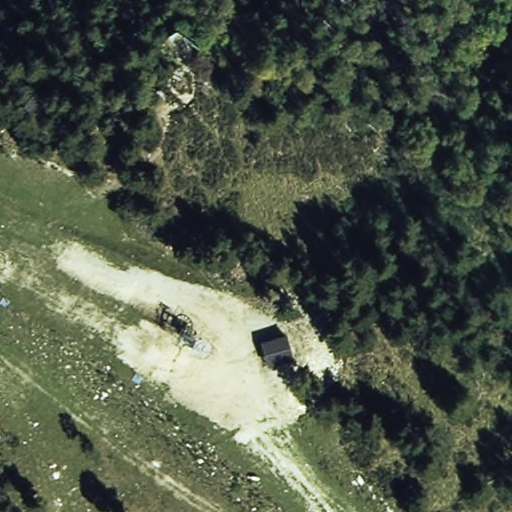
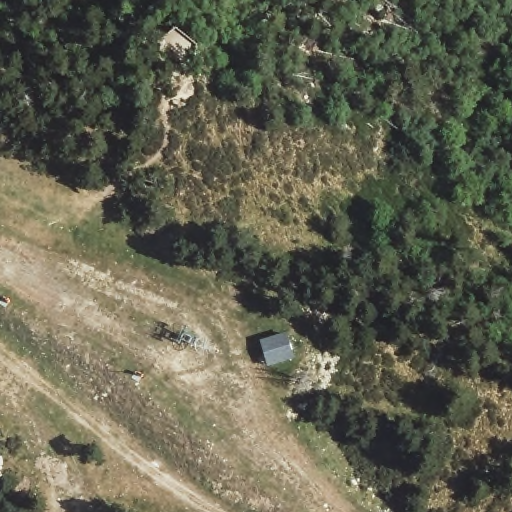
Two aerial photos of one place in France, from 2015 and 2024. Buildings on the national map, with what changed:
unchanged [(262,340),(285,332),(294,358),(269,365),(262,340)]

